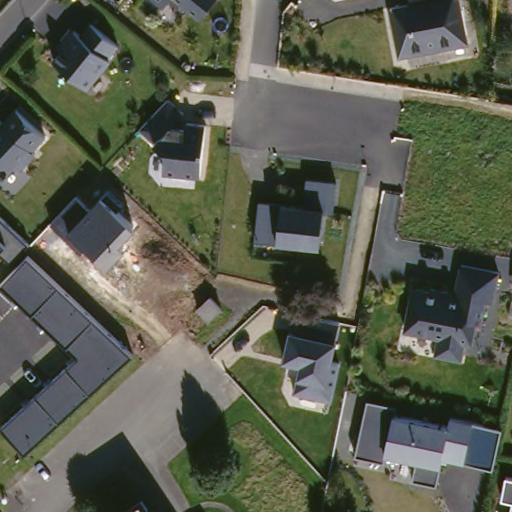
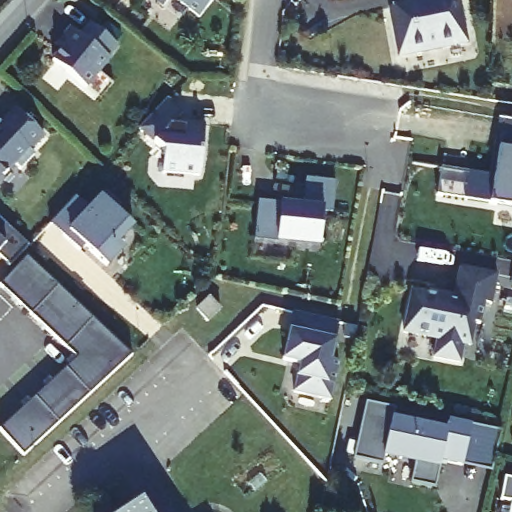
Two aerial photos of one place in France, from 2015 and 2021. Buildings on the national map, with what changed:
unchanged [(154,0),(165,0),(161,5),(154,0)]
unchanged [(450,48),(448,44),(430,48),(431,53),(407,58),(396,10),(425,4),(424,0),(465,0),(475,41),(450,48)]
unchanged [(105,60),(81,89),(49,61),(62,45),(59,44),(69,31),(76,37),(87,24),(113,46),(105,60)]
unchanged [(161,172),(164,151),(139,129),(167,100),(185,123),(205,124),(199,175),(161,172)]
unchanged [(44,136),(28,153),(31,157),(17,170),(13,166),(0,179),(0,122),(14,108),(44,136)]
new [(495,175),(500,149),(502,139),(497,138),(500,119),(512,121),(512,207),(490,204),(437,197),(442,168),(495,175)]
unchanged [(331,215),(325,214),(319,252),(278,247),(278,240),(254,238),(260,198),(281,200),(304,204),(308,178),(337,182),(331,215)]
unchanged [(122,245),(127,249),(108,268),(83,248),(80,252),(50,222),(75,195),(91,209),(101,197),(137,229),(122,245)]
unchanged [(9,266),(0,257),(0,219),(29,245),(9,266)]
unchanged [(1,429),(79,357),(0,286),(0,285),(27,257),(132,357),(24,455),(1,429)]
unchanged [(412,287),(451,294),(457,265),(497,274),(490,305),(484,304),(480,326),(473,324),(468,347),(463,346),(458,363),(432,359),(437,342),(401,334),(412,287)]
unchanged [(207,298),(218,312),(207,321),(196,307),(207,298)]
unchanged [(333,358),(341,360),(331,402),(297,393),(298,378),(296,378),(299,364),(284,360),(295,310),(340,319),(333,358)]
unchanged [(494,472),(442,461),(437,486),(412,480),(415,464),(383,456),(382,462),(355,456),(366,402),(394,409),(391,418),(447,429),(449,420),(502,430),(494,472)]
unchanged [(512,479),(512,505),(501,503),(505,478),(512,479)]
unchanged [(149,502),(155,512),(133,512),(149,502)]
unchanged [(512,505),(512,512),(511,512),(512,505)]

